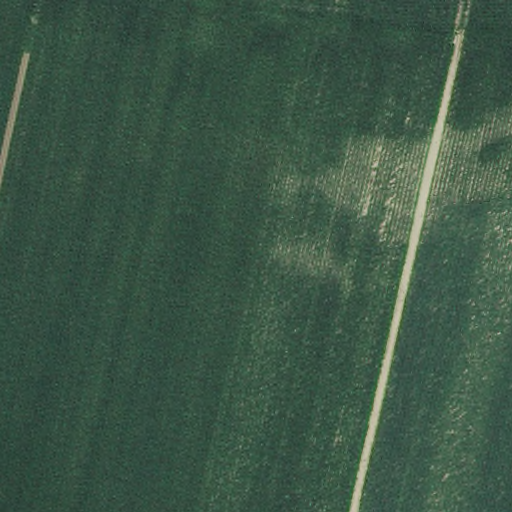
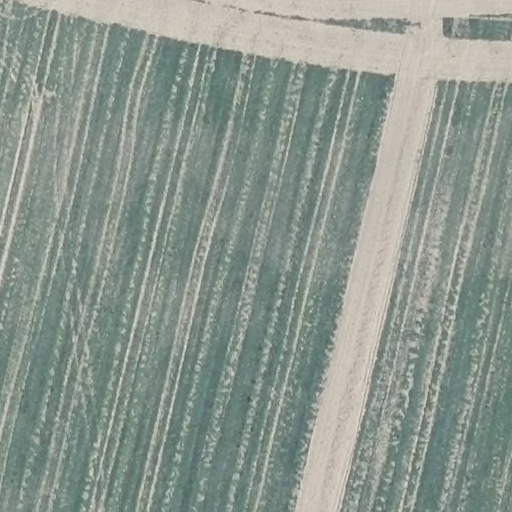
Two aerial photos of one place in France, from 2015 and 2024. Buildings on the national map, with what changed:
[]

